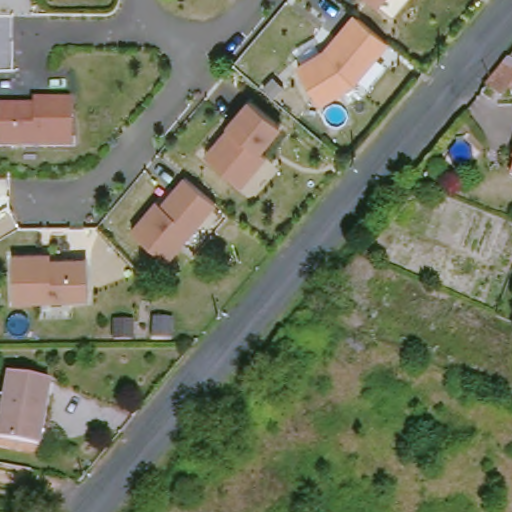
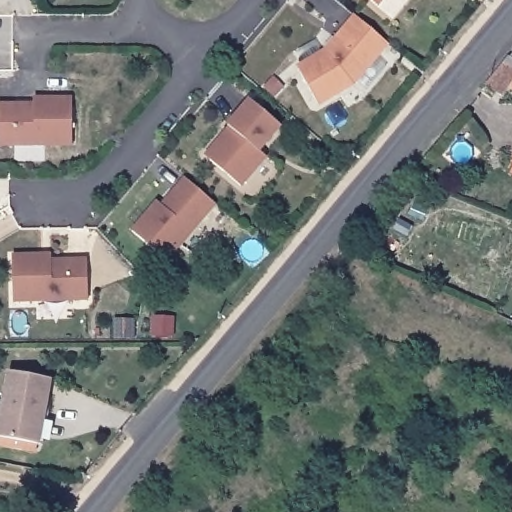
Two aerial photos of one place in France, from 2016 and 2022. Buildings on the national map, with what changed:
unchanged [(371,0),(384,0),(379,6),(371,0)]
unchanged [(356,85),(320,106),(301,71),(329,53),(359,19),(390,44),(356,85)]
unchanged [(278,122),(256,148),(263,153),(237,183),(207,156),(230,128),(224,123),(247,96),(278,122)]
unchanged [(74,146),(0,146),(0,105),(43,105),(43,99),(74,99),(74,146)]
unchanged [(512,167),(512,173),(510,172),(512,167)]
unchanged [(168,261),(133,232),(157,202),(163,207),(187,180),(217,206),(168,261)]
unchanged [(87,298),(13,301),(13,255),(43,253),(51,253),(51,259),(86,258),(87,298)]
unchanged [(1,439),(9,373),(57,382),(46,443),(40,455),(0,450),(1,439)]

